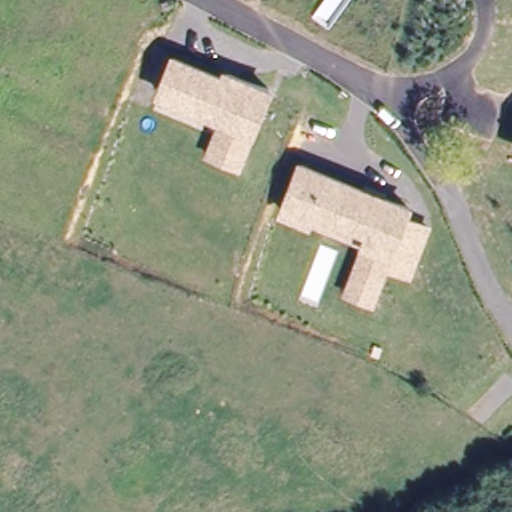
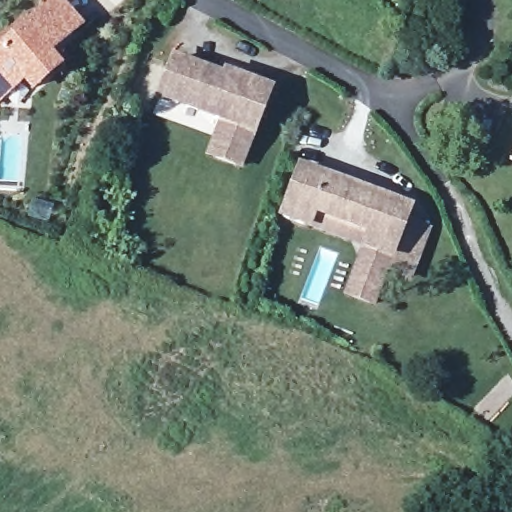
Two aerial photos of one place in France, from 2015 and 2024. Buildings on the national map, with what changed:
new [(26,24),(50,3),(47,0),(60,0),(85,29),(52,55),(63,69),(31,95),(23,84),(0,105),(0,40),(23,21),(26,24)]
unchanged [(224,84),(227,78),(270,95),(253,137),(223,124),(166,102),(160,99),(174,64),(186,68),(224,84)]
unchanged [(223,124),(253,137),(239,171),(209,159),(223,124)]
unchanged [(304,229),(277,219),(296,172),(404,215),(399,226),(423,235),(404,282),(381,273),(379,277),(367,309),(341,299),(355,263),(360,251),(304,229)]

